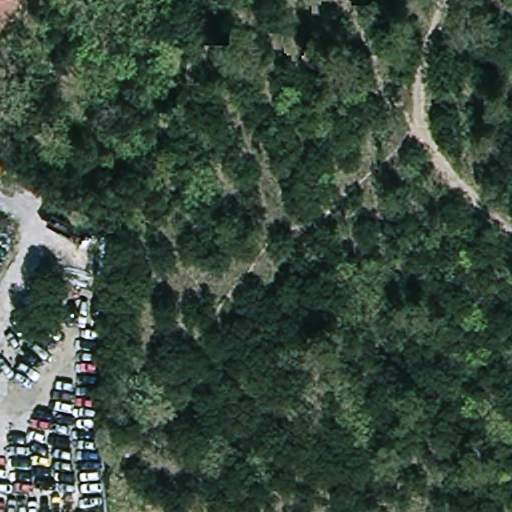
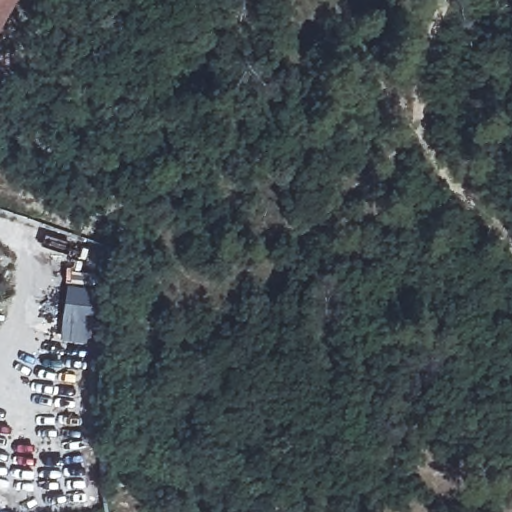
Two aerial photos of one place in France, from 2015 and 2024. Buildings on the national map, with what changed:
unchanged [(0,19),(0,0),(12,0),(0,19)]
new [(90,341),(61,337),(69,271),(95,273),(91,327),(90,341)]

